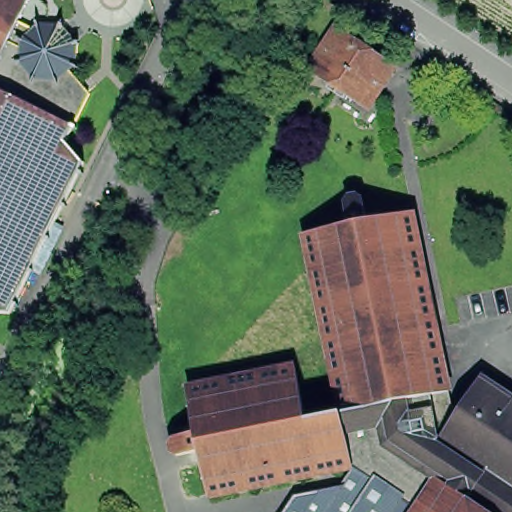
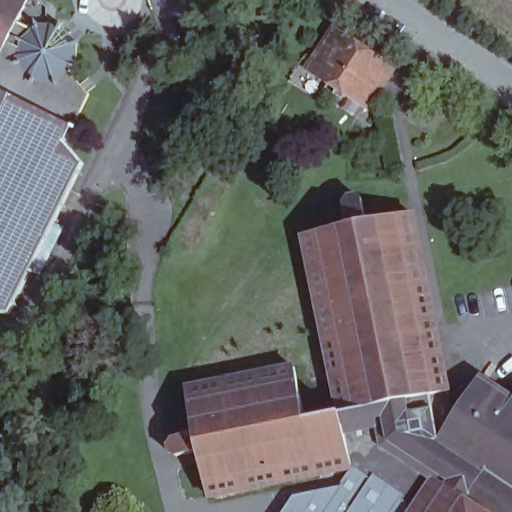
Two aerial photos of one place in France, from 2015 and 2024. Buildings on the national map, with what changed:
unchanged [(28,0),(17,22),(32,30),(36,23),(62,24),(78,43),(77,69),(71,74),(90,94),(66,142),(84,164),(10,314),(0,313),(0,0),(28,0)]
unchanged [(395,67),(367,109),(307,70),(314,59),(335,28),(395,67)]
unchanged [(340,419),(320,317),(317,317),(315,308),(317,308),(304,240),(350,232),(345,208),(349,202),(356,200),(362,204),(365,219),(367,228),(412,219),(451,411),(457,416),(480,383),(512,404),(512,512),(411,512),(352,472),(209,502),(200,457),(177,461),(170,457),(169,449),(173,444),(196,439),(194,429),(187,394),(295,372),(305,426),(340,419)]
unchanged [(411,512),(286,512),(295,497),(342,487),(352,472),(411,512)]

